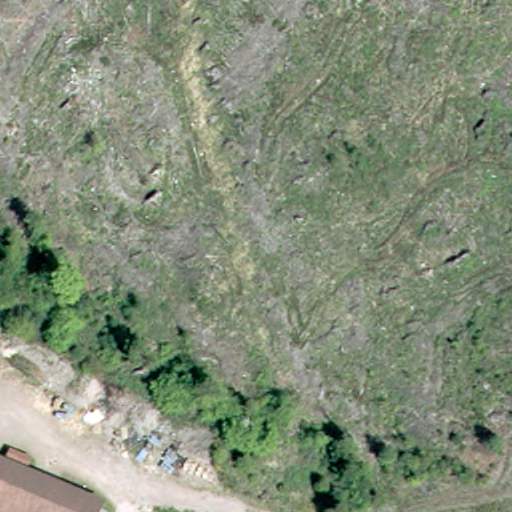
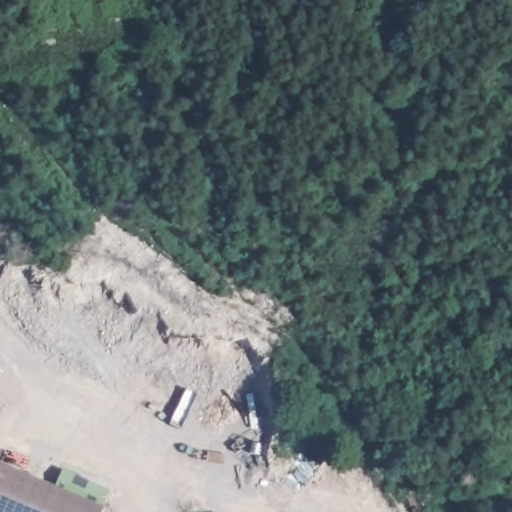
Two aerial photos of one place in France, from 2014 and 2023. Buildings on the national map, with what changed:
unchanged [(82,512),(0,512),(0,466),(82,512)]

